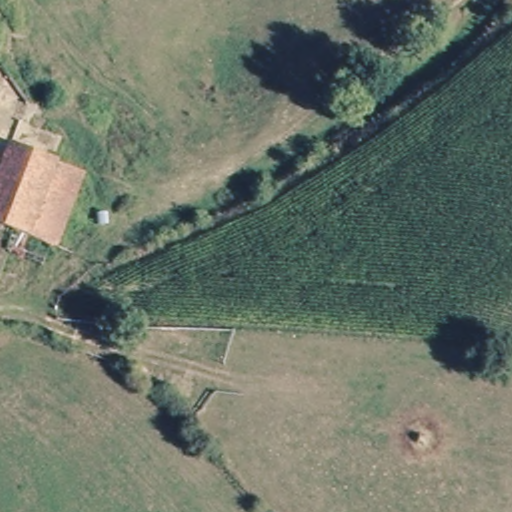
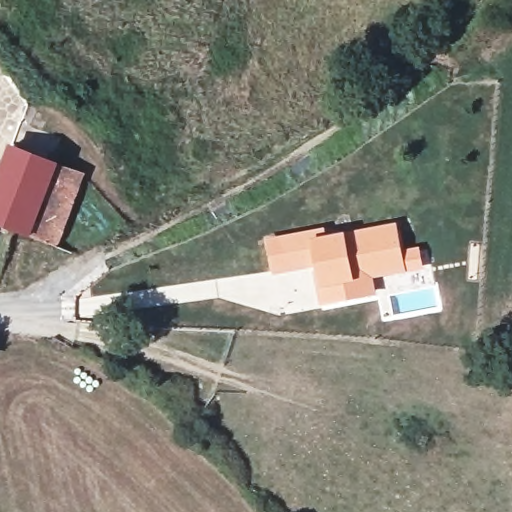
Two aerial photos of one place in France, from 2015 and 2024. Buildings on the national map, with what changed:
unchanged [(55,168),(30,235),(0,224),(0,166),(6,152),(55,168)]
unchanged [(74,197),(58,244),(30,235),(55,168),(80,176),(74,197)]
new [(371,278),(374,295),(319,306),(312,267),(273,274),(267,239),(324,228),(327,236),(397,223),(404,270),(371,278)]

